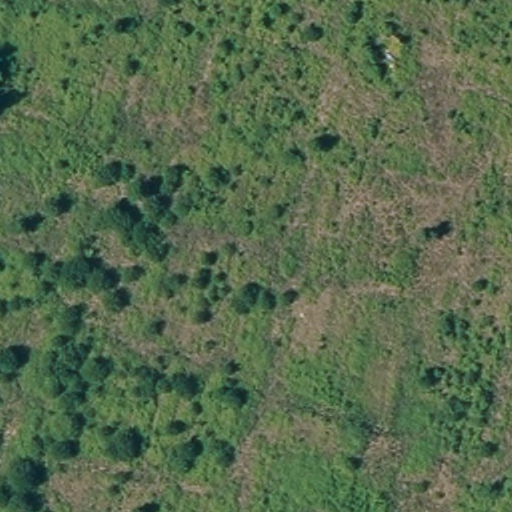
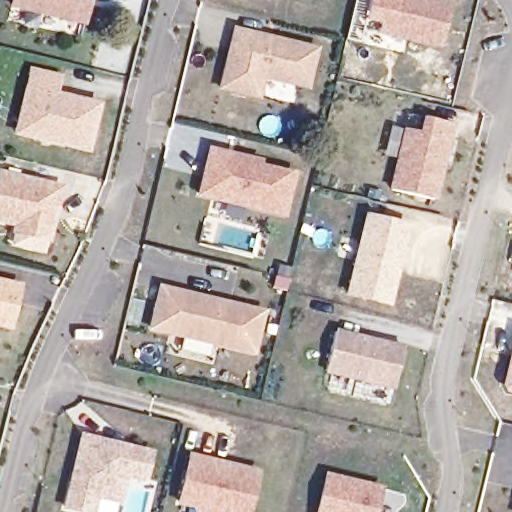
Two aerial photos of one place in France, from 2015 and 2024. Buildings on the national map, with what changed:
new [(11,0),(92,0),(86,25),(9,7),(11,0)]
new [(379,23),(366,20),(371,0),(445,0),(451,1),(439,49),(377,34),(379,23)]
new [(309,90),(265,80),(261,100),(217,90),(232,25),(319,47),(309,90)]
new [(101,103),(88,154),(12,136),(29,66),(63,75),(58,92),(101,103)]
new [(436,200),(390,186),(412,115),(454,124),(436,200)]
new [(206,145),(262,159),(261,164),(296,171),(283,219),(195,196),(206,145)]
new [(65,185),(51,242),(12,234),(13,227),(0,224),(0,170),(65,185)]
new [(344,295),(364,212),(411,222),(390,306),(344,295)]
new [(0,328),(0,279),(24,285),(12,330),(0,328)]
new [(265,310),(255,355),(147,330),(159,284),(265,310)]
new [(405,345),(394,390),(324,374),(335,329),(405,345)]
new [(500,382),(512,339),(512,393),(505,392),(500,382)]
new [(128,479),(119,503),(98,498),(95,512),(79,512),(62,508),(80,432),(155,451),(147,482),(128,479)]
new [(194,507),(175,502),(189,452),(260,471),(249,512),(195,512),(194,507)]
new [(325,472),(383,486),(376,512),(315,512),(325,472)]

